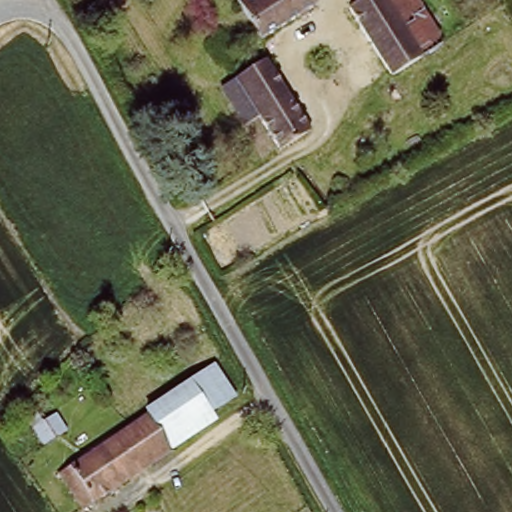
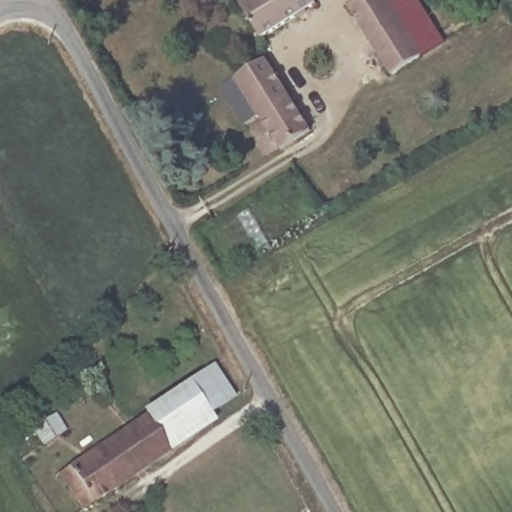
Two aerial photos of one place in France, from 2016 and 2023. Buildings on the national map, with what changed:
unchanged [(243,0),(325,0),(266,35),(243,0)]
unchanged [(385,0),(390,7),(423,59),(392,79),(350,15),(367,4),(374,0),(385,0)]
unchanged [(364,0),(374,0),(367,4),(364,0)]
unchanged [(423,59),(390,7),(400,0),(416,0),(447,43),(423,59)]
unchanged [(268,60),(312,129),(279,150),(257,116),(252,120),(229,82),(268,60)]
unchanged [(215,363),(241,405),(212,423),(185,382),(215,363)]
unchanged [(142,410),(185,382),(212,423),(169,450),(147,417),(142,410)]
unchanged [(147,417),(169,450),(78,507),(57,475),(147,417)]

